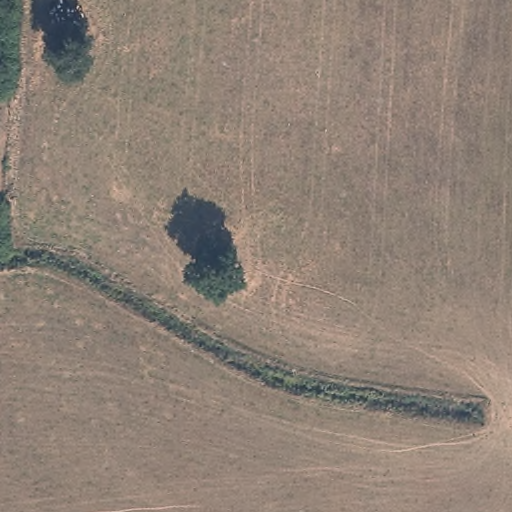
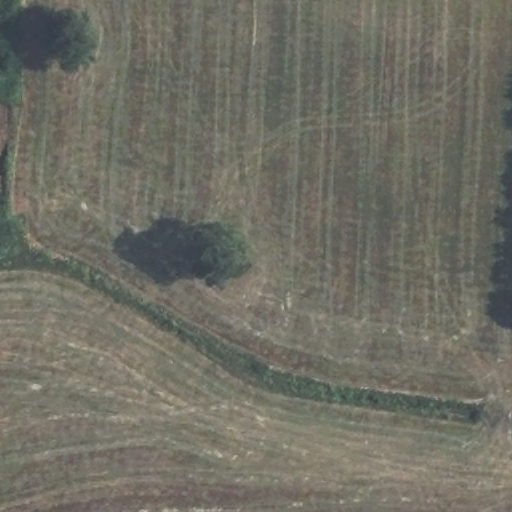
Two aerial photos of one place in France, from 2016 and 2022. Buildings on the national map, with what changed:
[]

